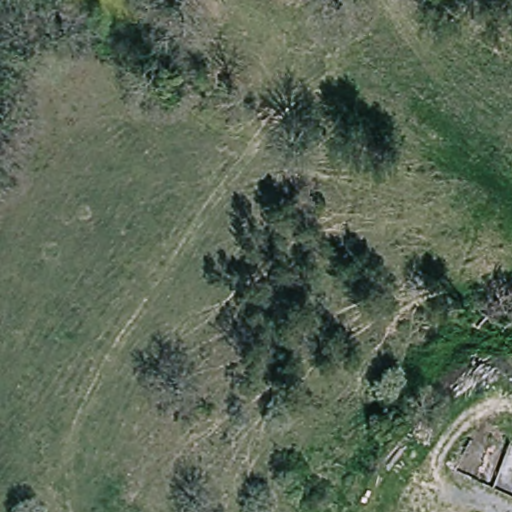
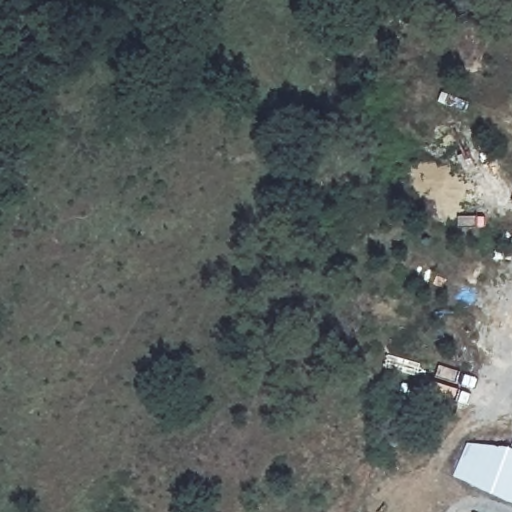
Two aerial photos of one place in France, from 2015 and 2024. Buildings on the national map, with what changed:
new [(512,448),(512,501),(475,485),(477,481),(457,473),(470,441),(511,448),(512,448)]

